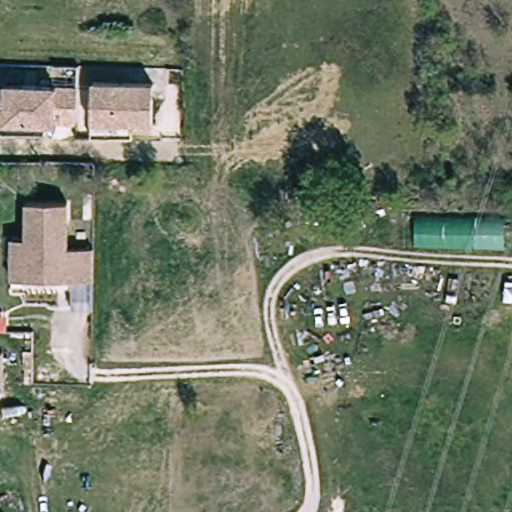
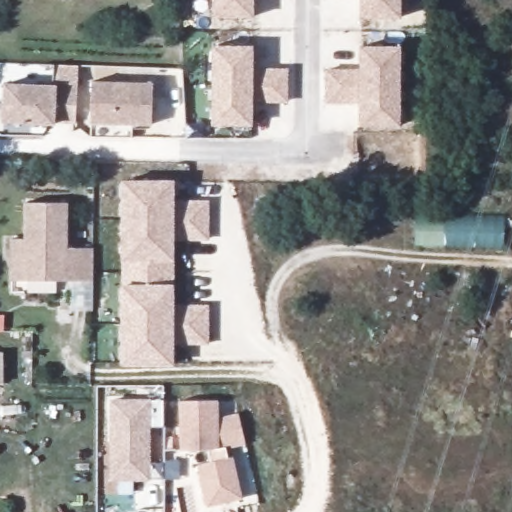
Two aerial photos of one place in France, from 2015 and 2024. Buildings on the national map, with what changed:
new [(212,18),(213,0),(255,0),(255,19),(212,18)]
new [(360,19),(360,0),(402,0),(402,20),(360,19)]
new [(254,45),(254,69),(288,69),(288,103),(253,102),(253,126),(213,126),(212,46),(254,45)]
new [(360,70),(360,46),(402,45),(402,126),(360,126),(360,104),(327,104),(325,69),(360,70)]
unchanged [(92,113),(92,82),(153,84),(152,115),(152,125),(132,124),(132,144),(90,143),(91,124),(92,113)]
unchanged [(7,110),(7,86),(72,88),(72,113),(72,121),(72,123),(50,123),(50,125),(7,124),(7,110)]
new [(122,364),(123,178),(175,179),(175,199),(210,199),(209,239),(175,238),(175,304),(210,304),(209,344),(175,345),(175,364),(122,364)]
unchanged [(17,239),(29,239),(30,204),(71,204),(71,246),(94,247),(95,278),(29,277),(17,276),(17,239)]
unchanged [(505,250),(415,249),(415,215),(505,217),(505,250)]
unchanged [(0,332),(0,316),(5,316),(5,332),(0,332)]
unchanged [(0,385),(0,356),(1,356),(2,386),(0,385)]
new [(110,480),(112,399),(152,399),(163,401),(163,426),(152,426),(150,481),(110,480)]
new [(219,400),(220,418),(238,413),(247,444),(227,449),(229,458),(233,457),(242,499),(207,507),(197,466),(211,462),(208,450),(180,451),(180,401),(219,400)]

